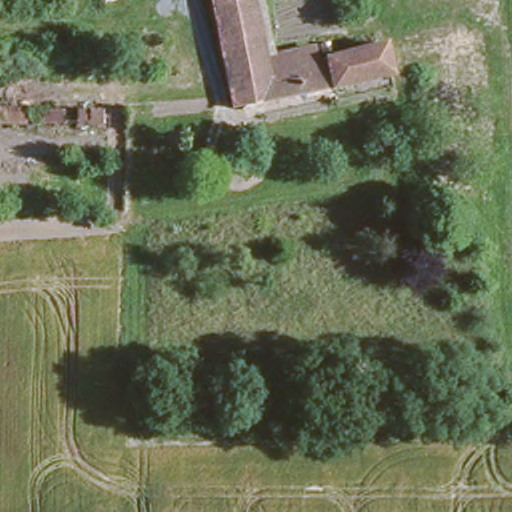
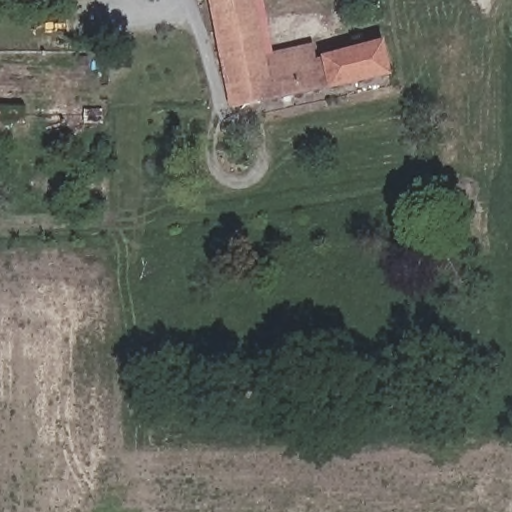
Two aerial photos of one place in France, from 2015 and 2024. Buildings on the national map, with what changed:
unchanged [(256,62),(380,40),(386,75),(226,102),(205,0),(243,0),(256,62)]
unchanged [(100,109),(99,125),(0,125),(0,52),(18,52),(19,107),(100,109)]

